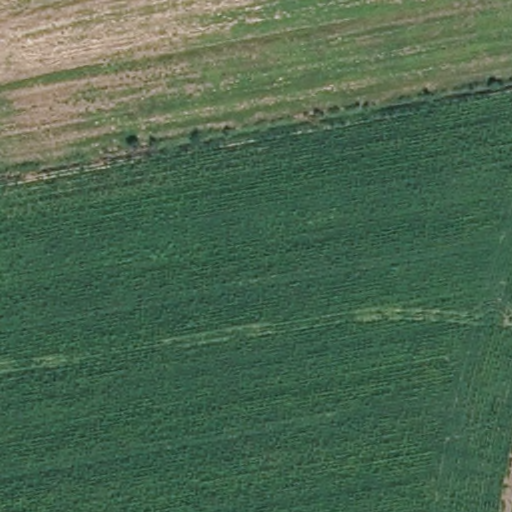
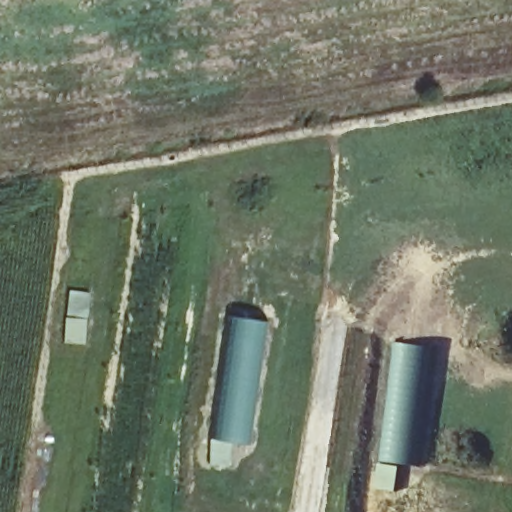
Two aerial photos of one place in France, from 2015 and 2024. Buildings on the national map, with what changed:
new [(226,315),(261,318),(244,443),(208,438),(226,315)]
new [(424,347),(417,405),(422,413),(416,465),(395,462),(397,440),(394,440),(406,345),(424,347)]

